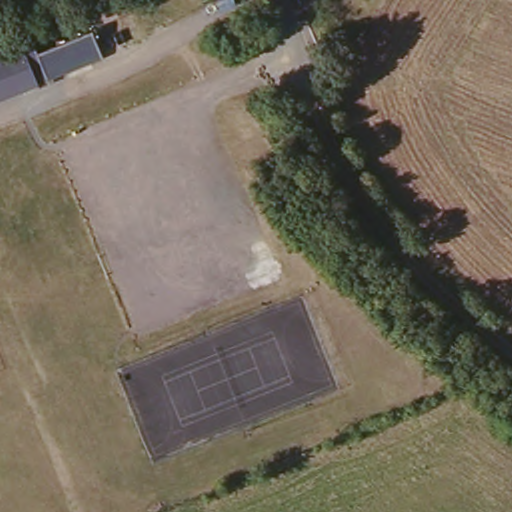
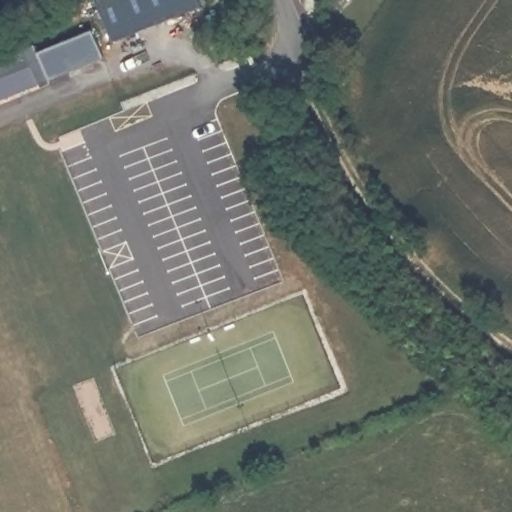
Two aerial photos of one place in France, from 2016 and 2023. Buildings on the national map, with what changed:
new [(101,0),(196,0),(201,14),(113,47),(97,2),(101,0)]
unchanged [(95,23),(106,51),(51,74),(39,45),(95,23)]
unchanged [(0,93),(0,56),(11,52),(13,54),(39,45),(51,74),(0,93)]

